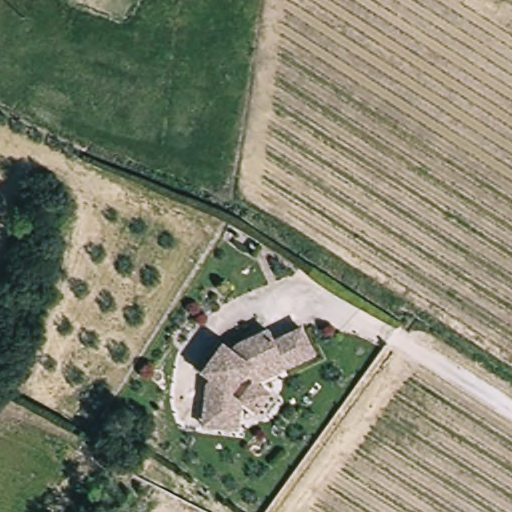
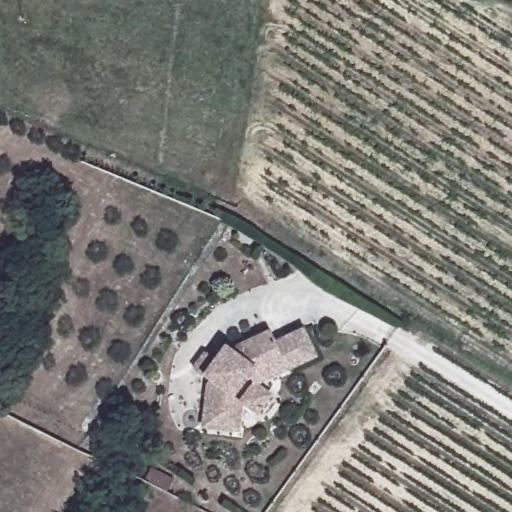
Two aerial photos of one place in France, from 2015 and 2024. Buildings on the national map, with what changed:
unchanged [(204,437),(205,423),(206,383),(210,375),(194,365),(203,352),(212,358),(217,350),(226,354),(231,345),(262,332),(269,343),(301,328),(315,356),(282,371),(253,388),(242,380),(229,400),(243,408),(242,437),(204,437)]
unchanged [(266,423),(243,408),(255,390),(277,404),(266,423)]

